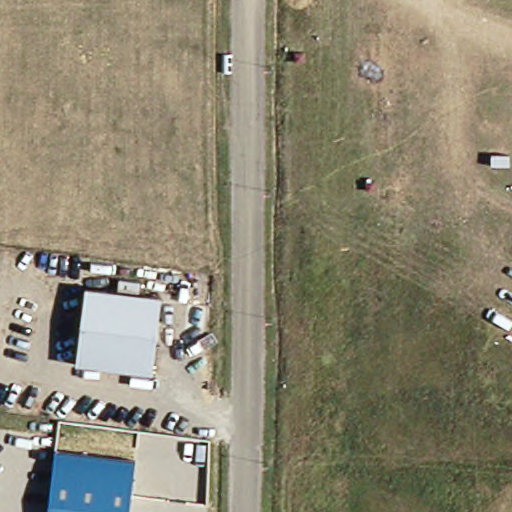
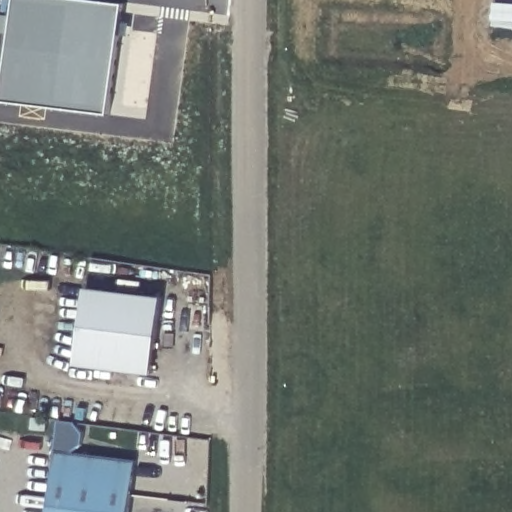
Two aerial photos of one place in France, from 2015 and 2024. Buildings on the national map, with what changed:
new [(112,113),(4,99),(16,0),(111,0),(127,2),(112,113)]
unchanged [(86,287),(162,297),(152,373),(77,364),(86,287)]
unchanged [(137,460),(130,512),(49,512),(57,449),(137,460)]

